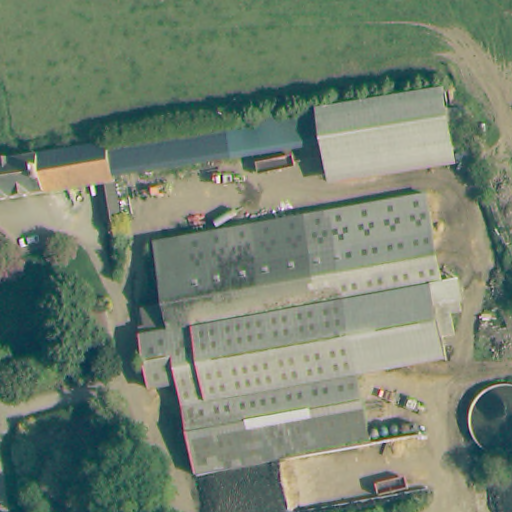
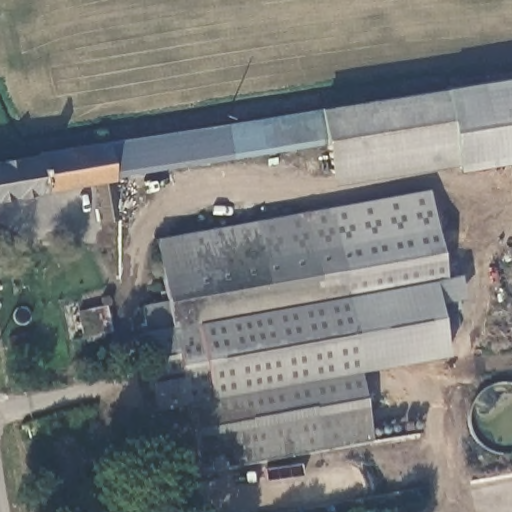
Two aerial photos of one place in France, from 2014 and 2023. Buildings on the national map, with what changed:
new [(456,166),(454,152),(445,91),(443,87),(512,77),(512,161),(456,169),(456,166)]
unchanged [(445,91),(454,152),(456,166),(329,183),(328,169),(324,144),(114,174),(108,139),(445,91)]
unchanged [(102,220),(96,181),(0,195),(0,158),(37,153),(37,148),(108,138),(108,139),(114,174),(120,217),(102,220)]
unchanged [(359,377),(371,444),(199,469),(184,379),(156,383),(147,329),(152,329),(149,301),(172,298),(161,237),(431,197),(444,285),(457,283),(460,315),(450,316),(452,337),(441,339),(444,364),(359,377)]
unchanged [(113,336),(87,341),(82,315),(108,310),(113,336)]

